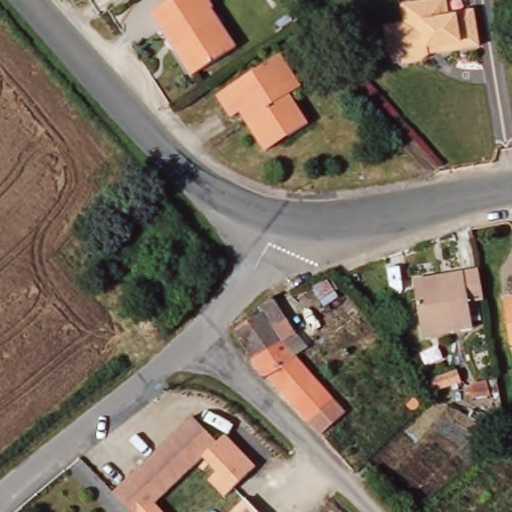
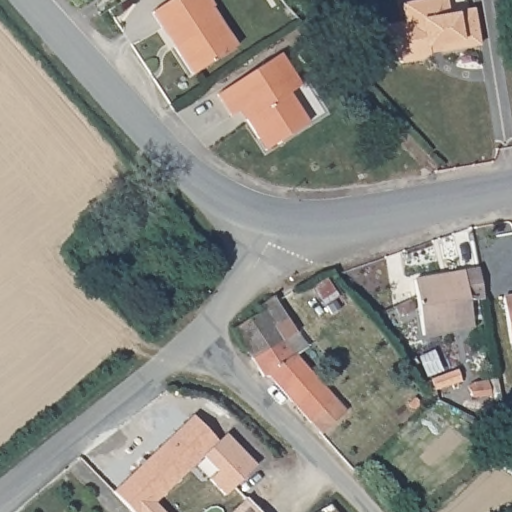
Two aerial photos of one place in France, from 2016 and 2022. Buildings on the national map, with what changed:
unchanged [(197,81),(155,17),(180,0),(208,0),(241,49),(197,81)]
unchanged [(390,45),(387,30),(408,26),(405,10),(447,2),(450,17),(475,14),(481,47),(431,56),(423,61),(402,65),(401,62),(390,56),(390,45)]
unchanged [(262,143),(244,116),(232,124),(217,100),(281,55),(303,87),(293,95),(316,127),(293,144),(272,158),(262,143)]
unchanged [(469,305),(473,329),(423,336),(413,279),(480,270),(485,302),(469,305)]
unchanged [(185,301),(210,272),(224,289),(216,300),(208,310),(199,318),(174,333),(159,313),(185,301)]
unchanged [(352,311),(338,318),(315,287),(332,281),(352,311)]
unchanged [(276,338),(281,347),(274,351),(255,361),(235,330),(264,315),(260,305),(280,298),(291,317),(285,322),(290,332),(276,338)]
unchanged [(501,300),(512,298),(512,343),(509,343),(501,300)]
unchanged [(322,437),(311,423),(271,376),(265,378),(255,361),(274,351),(281,347),(287,344),(305,369),(334,405),(337,402),(348,416),(322,437)]
unchanged [(136,507),(125,495),(111,482),(189,403),(215,429),(136,507)]
unchanged [(262,512),(235,512),(250,499),(262,512)]

